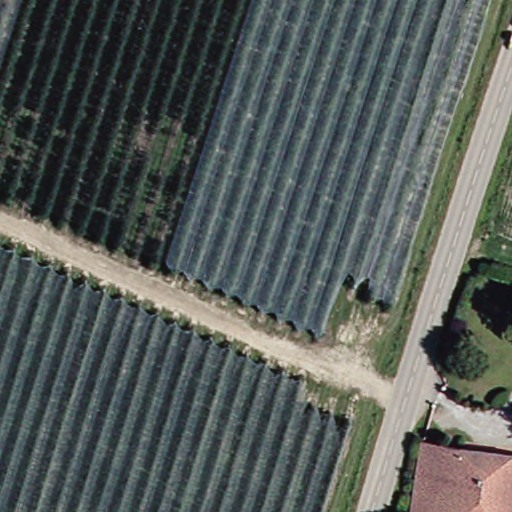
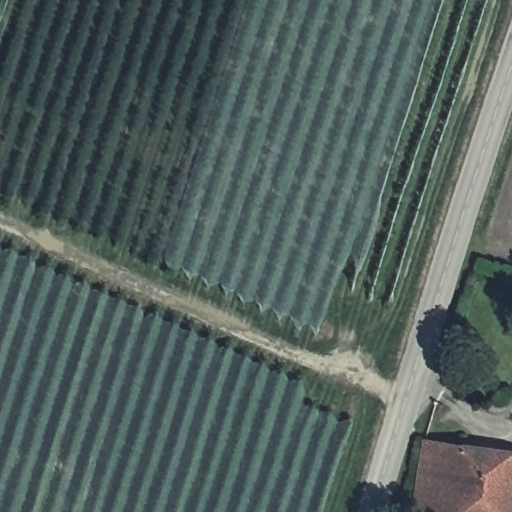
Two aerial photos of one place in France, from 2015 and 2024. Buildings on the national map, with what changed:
unchanged [(420,438),(512,457),(512,512),(432,512),(406,507),(420,438)]

